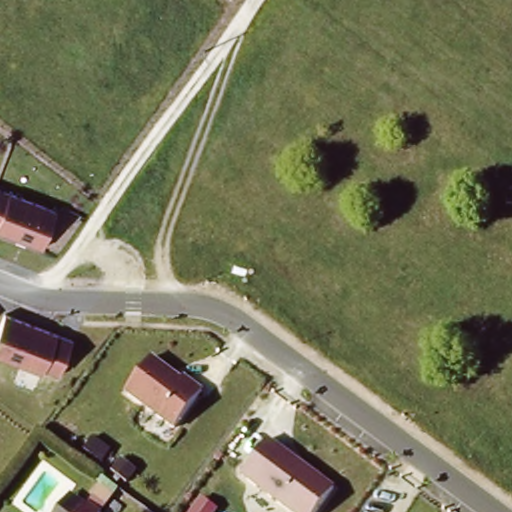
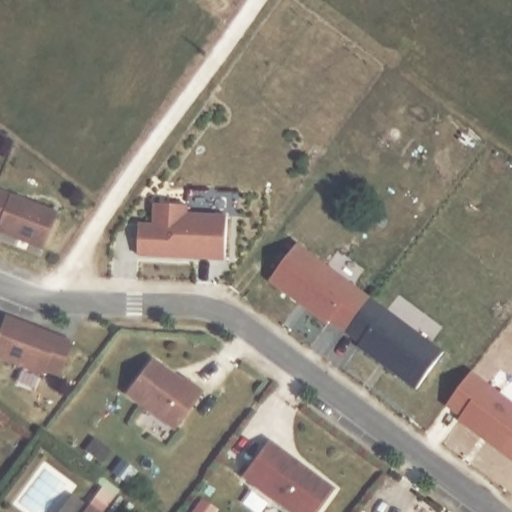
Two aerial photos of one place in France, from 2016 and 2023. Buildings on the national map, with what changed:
unchanged [(41,249),(0,233),(0,188),(56,209),(41,249)]
new [(138,257),(139,223),(154,224),(154,204),(189,205),(189,213),(229,214),(228,262),(138,257)]
new [(417,391),(357,347),(359,344),(331,323),(329,325),(271,283),(299,244),(445,352),(417,391)]
unchanged [(71,339),(59,374),(46,370),(44,376),(0,358),(0,323),(4,313),(71,339)]
unchanged [(152,356),(182,379),(184,374),(203,389),(174,431),(123,393),(152,356)]
new [(458,420),(461,417),(447,407),(472,371),(512,401),(512,460),(458,420)]
unchanged [(268,437),(336,487),(317,512),(289,512),(241,476),(268,437)]
unchanged [(73,496),(85,504),(88,501),(103,512),(61,512),(73,496)]

